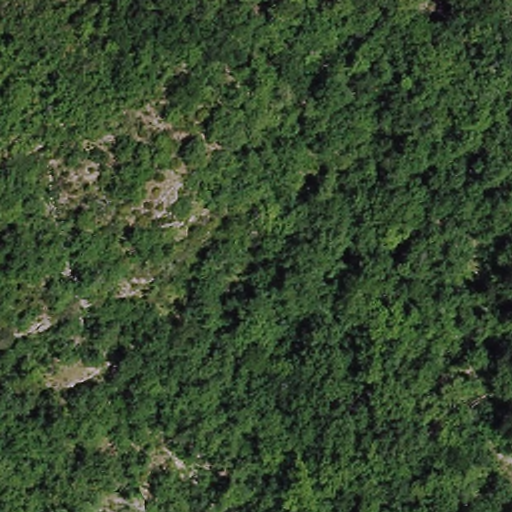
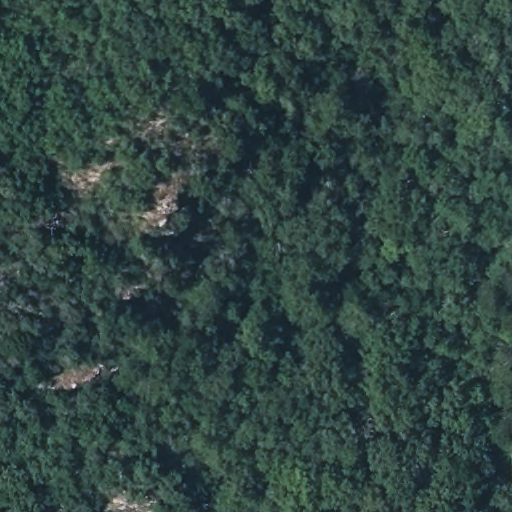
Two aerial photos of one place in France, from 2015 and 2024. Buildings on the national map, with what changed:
[]

